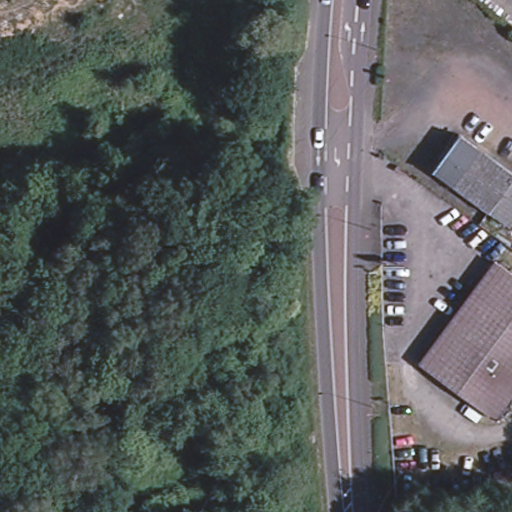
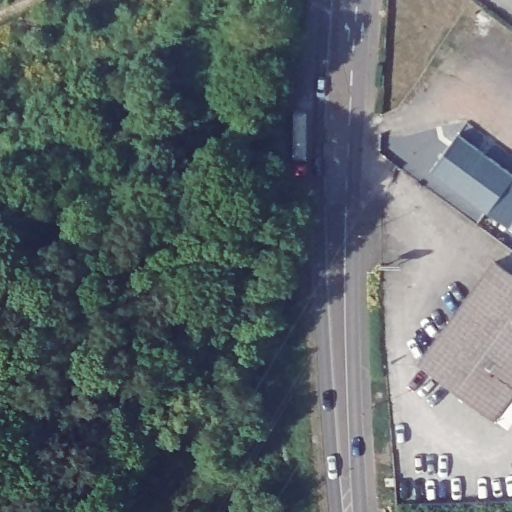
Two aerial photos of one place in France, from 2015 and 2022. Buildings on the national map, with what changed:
unchanged [(458,134),(512,176),(512,181),(487,213),(430,170),(458,134)]
unchanged [(505,227),(487,213),(512,181),(512,218),(505,227)]
unchanged [(420,363),(427,355),(498,261),(512,271),(512,394),(492,419),(427,369),(420,363)]

